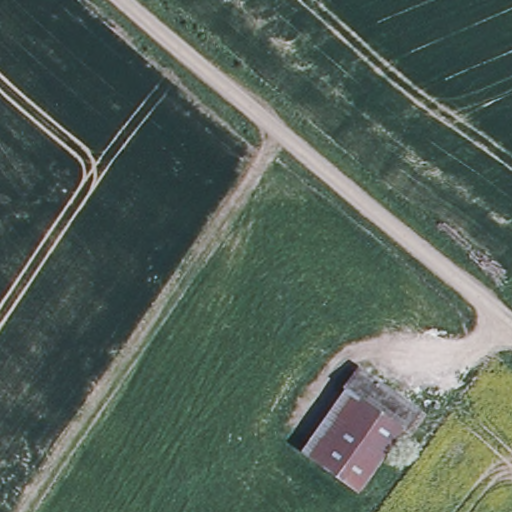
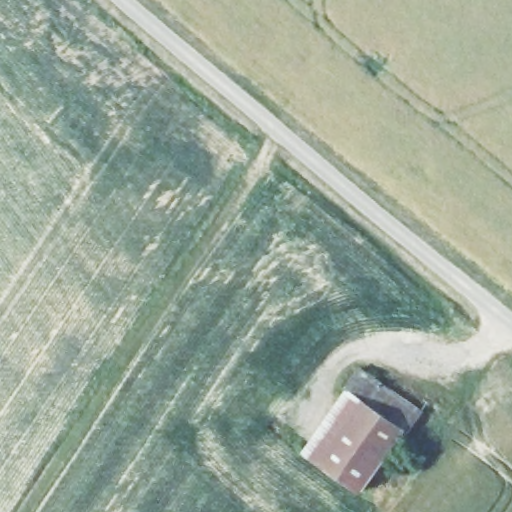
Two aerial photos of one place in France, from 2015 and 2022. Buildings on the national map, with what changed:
unchanged [(423,411),(363,495),(305,454),(365,370),(423,411)]

